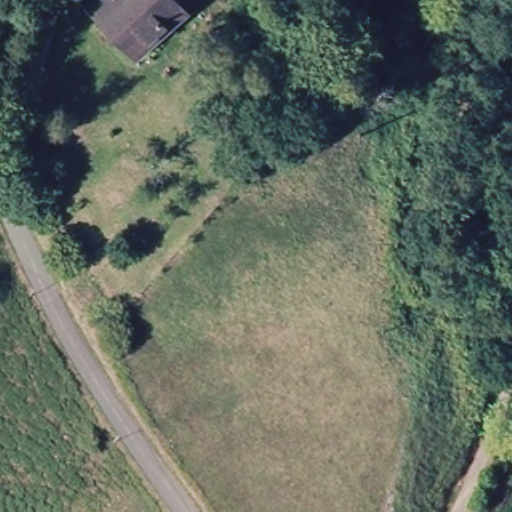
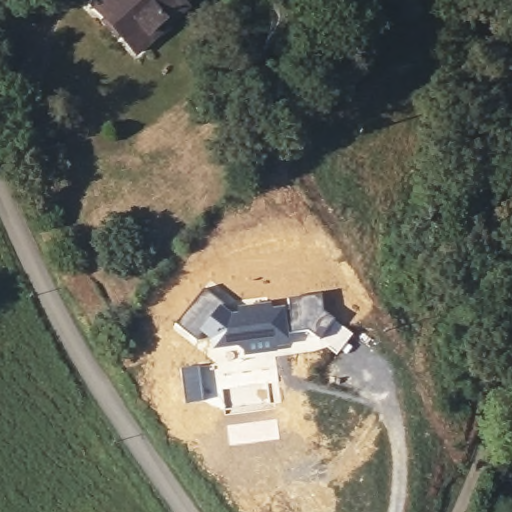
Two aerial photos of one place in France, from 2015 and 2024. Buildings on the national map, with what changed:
unchanged [(187,5),(129,51),(91,0),(183,0),(187,5)]
new [(210,283),(211,284),(239,300),(287,297),(322,292),(325,309),(352,333),(337,354),(325,345),(314,348),(300,349),(293,349),(241,357),(237,350),(237,348),(211,351),(175,325),(210,283)]
new [(211,364),(217,397),(185,403),(180,368),(211,364)]

